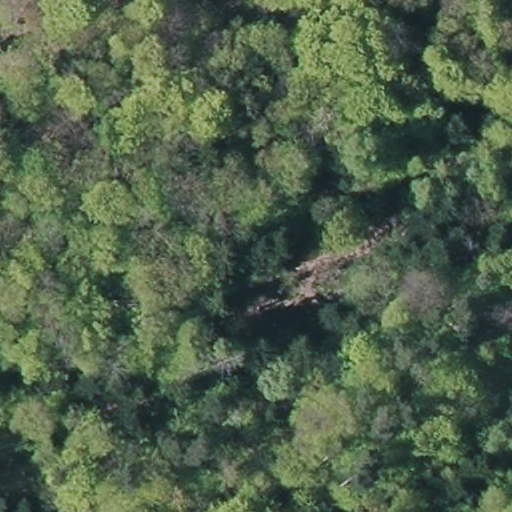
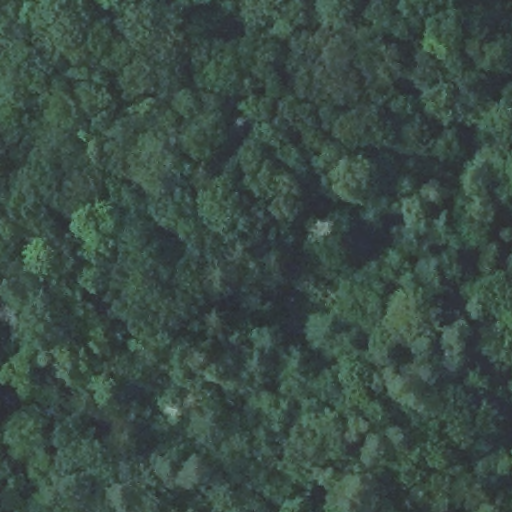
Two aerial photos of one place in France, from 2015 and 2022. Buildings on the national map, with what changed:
[]

